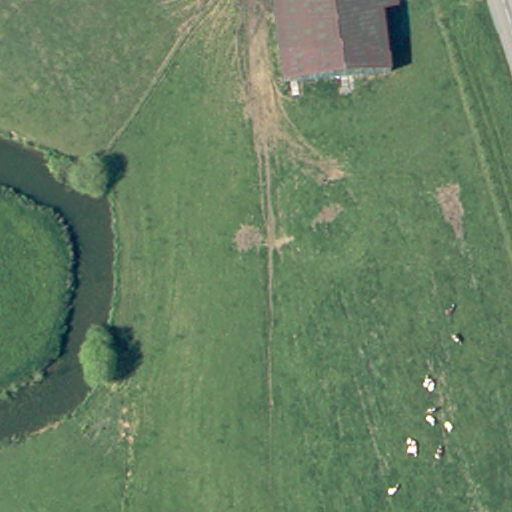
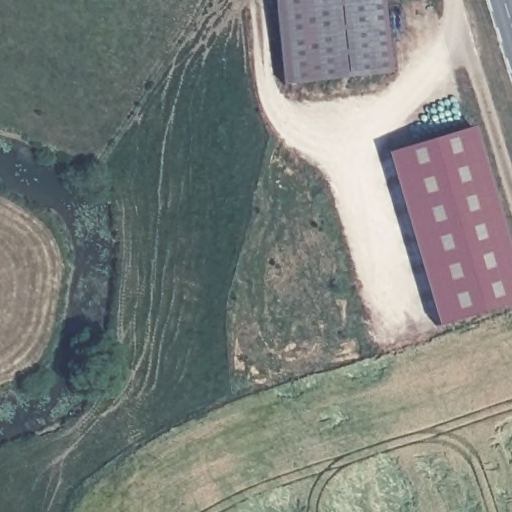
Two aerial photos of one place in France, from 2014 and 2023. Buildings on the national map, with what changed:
unchanged [(392,72),(289,86),(278,0),(382,0),(392,72)]
new [(474,127),(512,254),(512,303),(436,326),(384,153),(474,127)]

